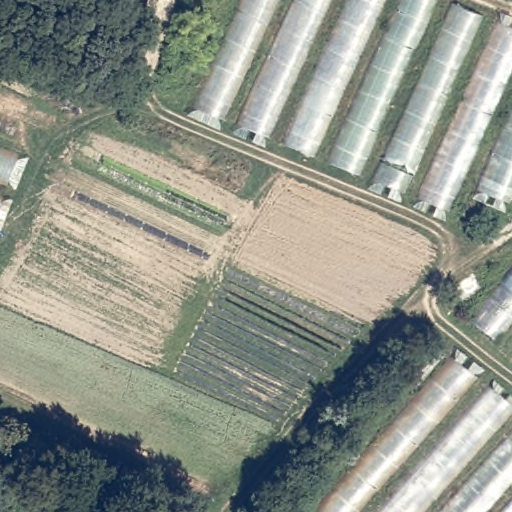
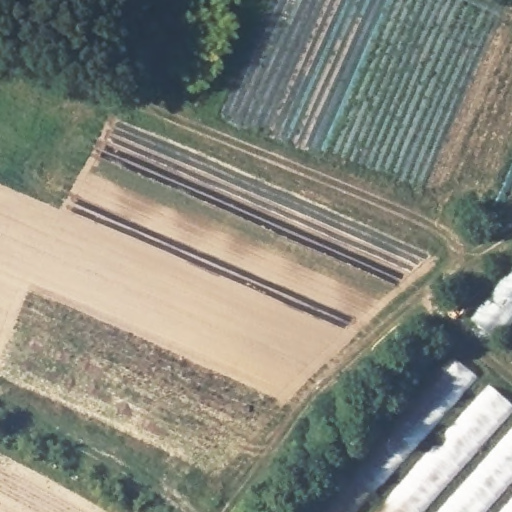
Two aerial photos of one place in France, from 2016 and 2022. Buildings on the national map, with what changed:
demolished [(453,0),(512,24),(512,188),(505,204),(460,186),(446,215),(190,106),(236,0),(453,0)]
demolished [(40,102),(0,205),(0,87),(40,102)]
demolished [(512,274),(512,352),(473,322),(512,274)]
unchanged [(512,512),(322,512),(462,351),(512,391),(512,512)]

